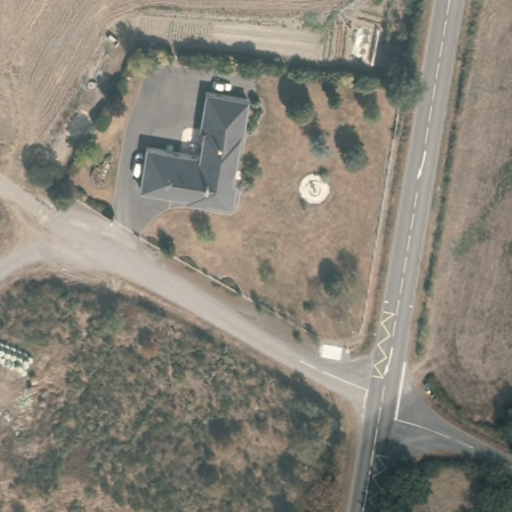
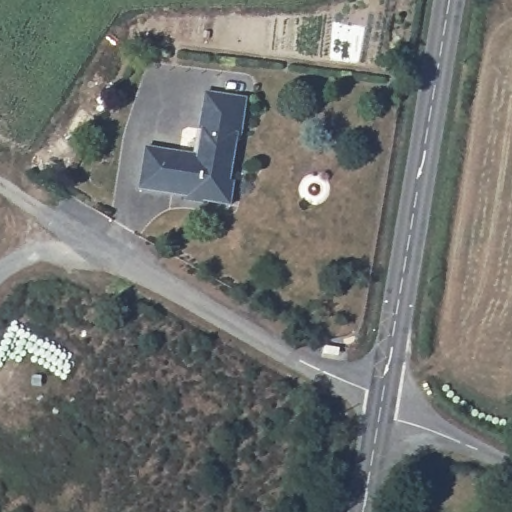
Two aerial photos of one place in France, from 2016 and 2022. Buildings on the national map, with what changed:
unchanged [(240,139),(234,138),(227,182),(233,181),(228,205),(192,201),(191,204),(182,202),(183,199),(139,192),(142,150),(195,157),(202,94),(243,98),(240,139)]

